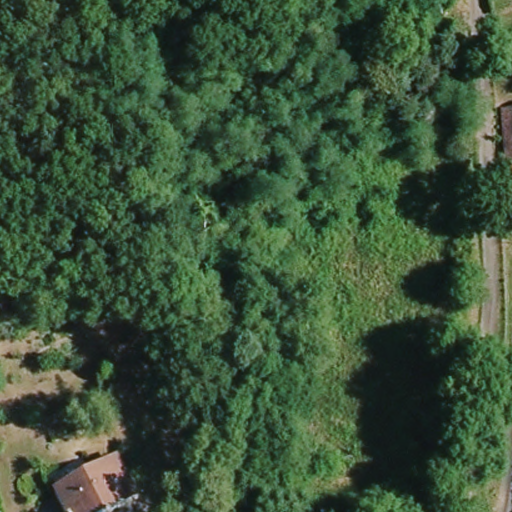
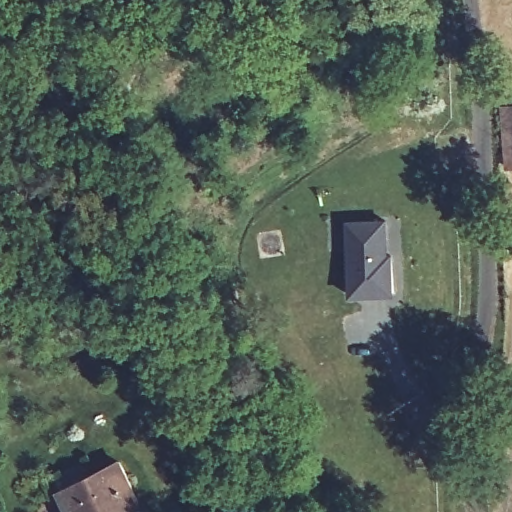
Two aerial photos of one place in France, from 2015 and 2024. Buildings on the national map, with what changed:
unchanged [(512,112),(512,155),(508,112),(512,112)]
new [(389,218),(391,249),(394,249),(396,295),(348,296),(345,219),(389,218)]
unchanged [(117,462),(135,497),(105,512),(71,512),(60,492),(117,462)]

